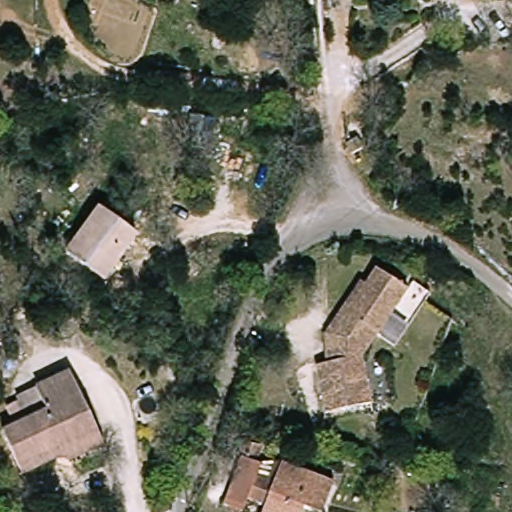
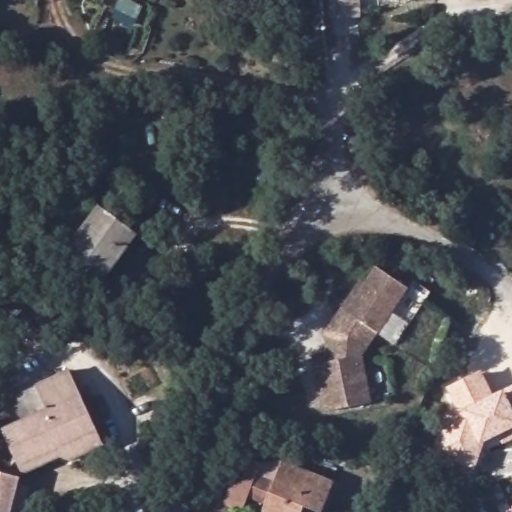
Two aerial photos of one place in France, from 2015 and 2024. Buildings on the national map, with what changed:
unchanged [(107,204),(142,232),(106,274),(70,246),(107,204)]
unchanged [(353,273),(399,297),(379,334),(334,312),(353,273)]
unchanged [(365,360),(329,363),(324,329),(334,312),(379,334),(365,360)]
unchanged [(329,363),(365,360),(371,402),(326,408),(318,365),(329,363)]
new [(446,411),(452,412),(454,405),(446,387),(481,371),(493,394),(504,389),(512,385),(512,439),(489,450),(485,442),(474,468),(430,454),(446,411)]
unchanged [(69,465),(50,453),(17,468),(0,432),(0,427),(44,407),(34,388),(68,374),(96,432),(103,450),(69,465)]
unchanged [(254,481),(246,512),(219,512),(234,461),(258,467),(254,481)]
unchanged [(277,463),(330,479),(321,511),(297,503),(295,512),(246,512),(254,481),(271,485),(277,463)]
new [(13,512),(0,512),(0,472),(22,477),(13,512)]

